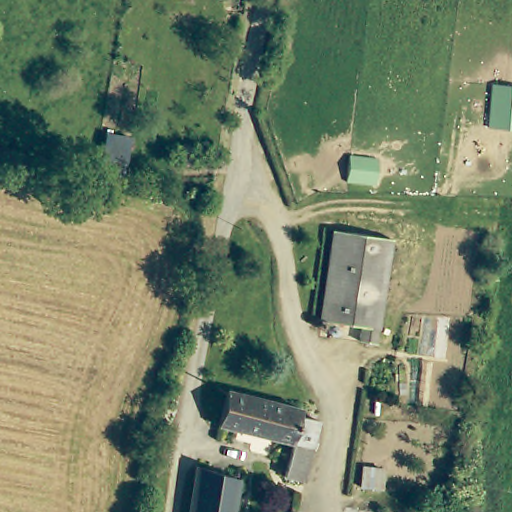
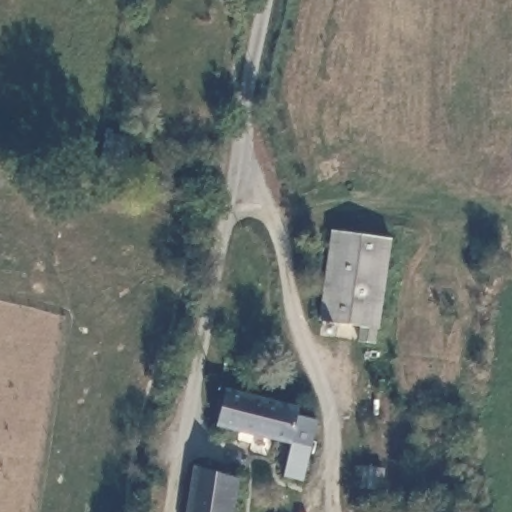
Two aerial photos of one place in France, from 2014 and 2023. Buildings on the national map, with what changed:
new [(487,127),(491,82),(512,85),(512,131),(487,127)]
unchanged [(397,233),(378,342),(363,340),(366,324),(325,317),(339,223),(397,233)]
unchanged [(300,405),(299,411),(319,416),(306,476),(287,473),(294,441),(218,425),(228,386),(300,405)]
unchanged [(241,479),(235,512),(190,512),(197,468),(241,479)]

